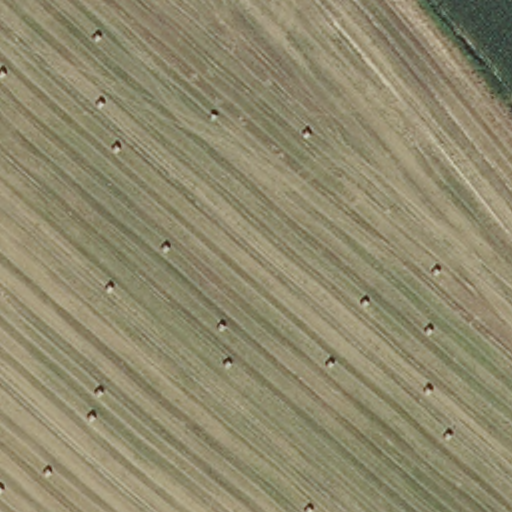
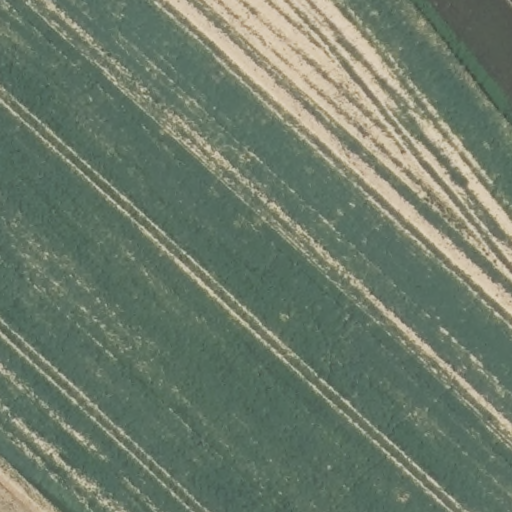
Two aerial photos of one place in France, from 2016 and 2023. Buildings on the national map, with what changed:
[]

